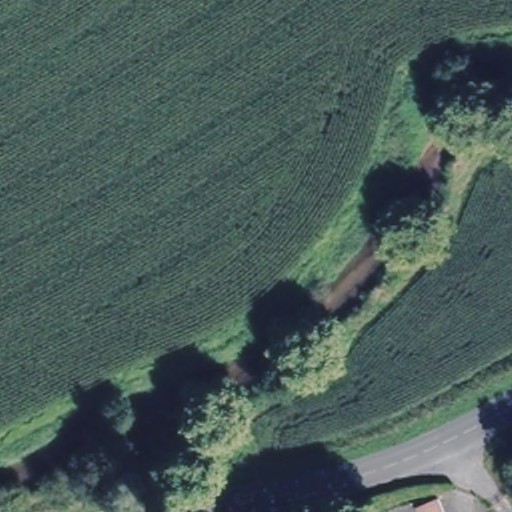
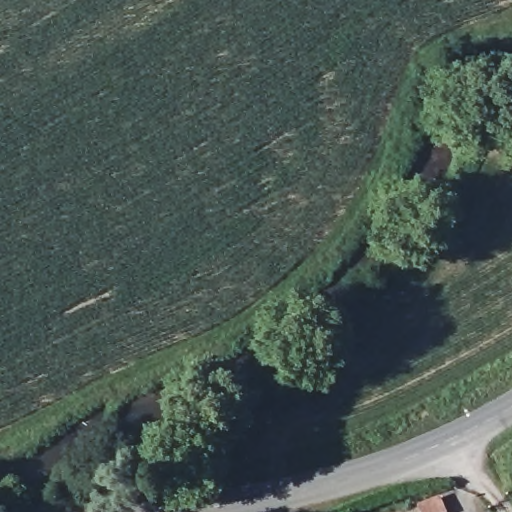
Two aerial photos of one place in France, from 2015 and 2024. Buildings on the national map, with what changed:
unchanged [(438,490),(449,512),(448,512),(421,512),(417,502),(438,490)]

